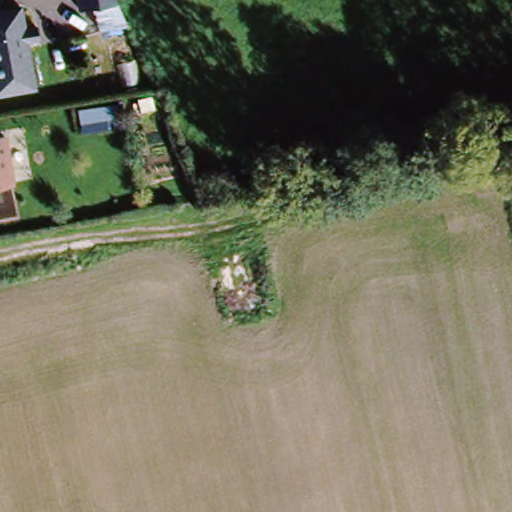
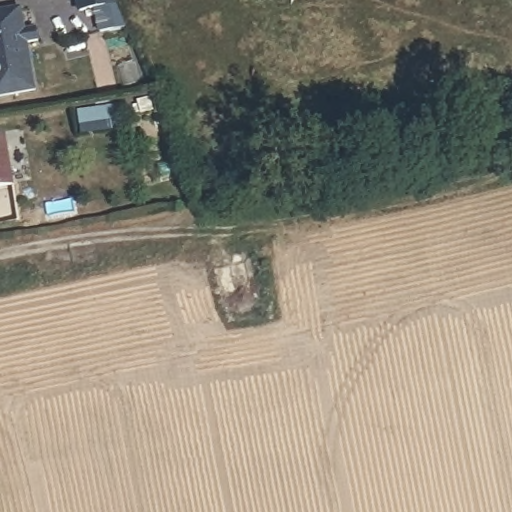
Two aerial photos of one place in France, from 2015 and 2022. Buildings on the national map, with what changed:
unchanged [(82,0),(118,0),(120,4),(84,10),(82,0)]
unchanged [(0,17),(25,13),(40,94),(0,101),(0,17)]
unchanged [(16,183),(0,186),(0,138),(9,136),(16,183)]

